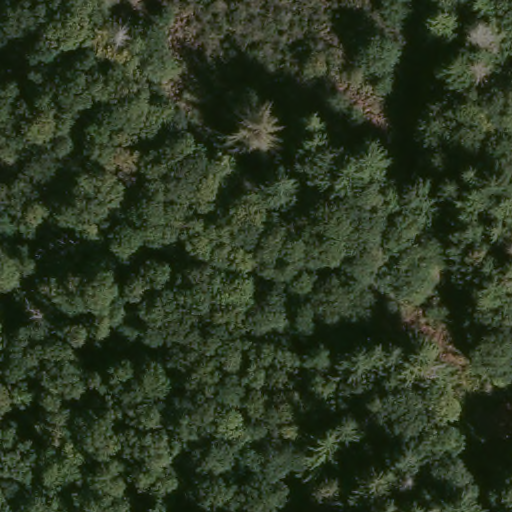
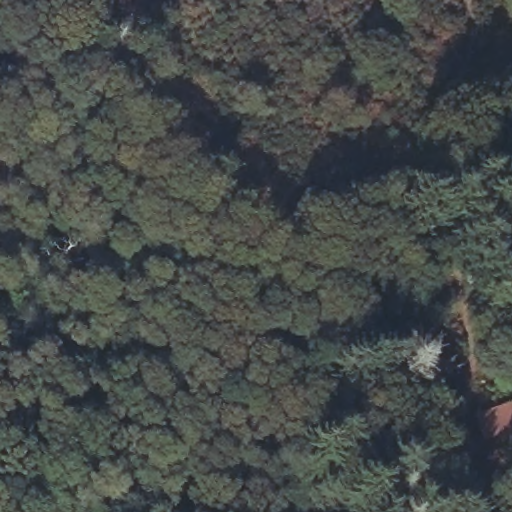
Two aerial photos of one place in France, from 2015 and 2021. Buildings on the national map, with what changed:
unchanged [(473,412),(512,398),(512,427),(481,441),(473,412)]

